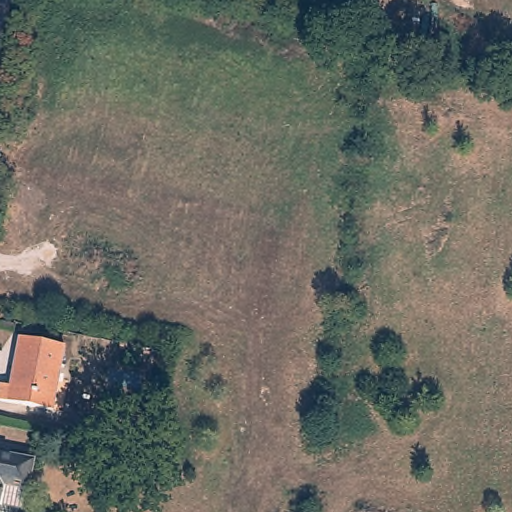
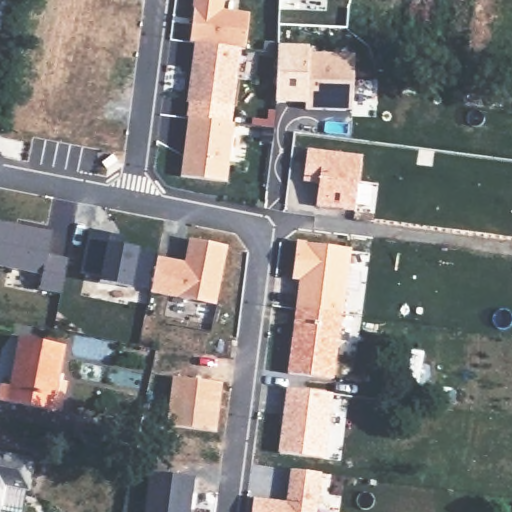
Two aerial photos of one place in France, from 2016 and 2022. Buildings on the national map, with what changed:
new [(196,0),(223,0),(222,12),(250,16),(246,50),(240,49),(197,44),(191,43),(196,0)]
new [(353,111),(306,110),(306,103),(275,102),(279,43),(309,44),(308,53),(356,55),(353,111)]
new [(197,44),(240,49),(233,109),(189,103),(197,44)]
new [(185,157),(189,157),(191,137),(187,136),(189,119),(235,125),(227,184),(182,178),(185,157)]
new [(355,209),(317,205),(320,183),(305,182),(308,150),(358,155),(355,209)]
new [(88,232),(109,236),(107,246),(138,252),(138,253),(156,257),(156,259),(150,292),(131,289),(131,290),(99,284),(100,279),(79,275),(88,232)]
new [(335,379),(287,373),(300,282),(292,281),(297,241),(352,249),(335,379)]
new [(150,292),(156,259),(173,263),(172,266),(183,268),(188,242),(226,249),(214,307),(149,295),(150,292)]
unchanged [(13,389),(23,342),(66,350),(54,413),(0,404),(0,390),(1,387),(13,389)]
new [(217,431),(165,424),(172,376),(223,383),(217,431)]
new [(325,458),(279,453),(287,388),(336,393),(325,458)]
unchanged [(87,427),(115,433),(111,449),(85,443),(87,427)]
unchanged [(24,512),(0,512),(0,456),(34,462),(24,512)]
new [(251,512),(253,500),(287,503),(292,470),(322,473),(316,512),(251,512)]
new [(192,483),(188,512),(143,512),(147,477),(192,483)]

